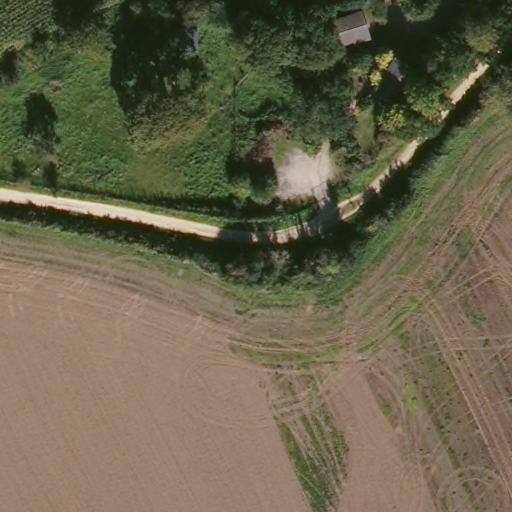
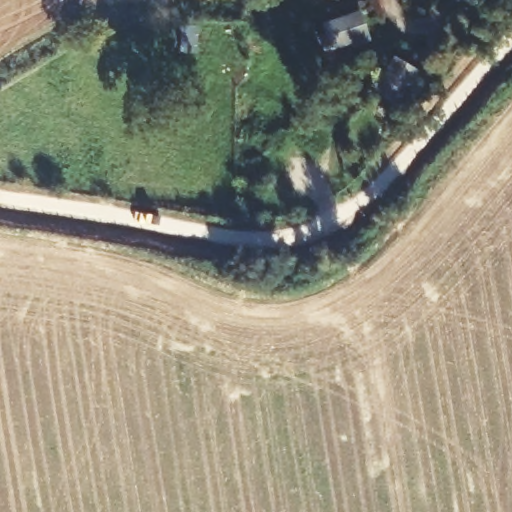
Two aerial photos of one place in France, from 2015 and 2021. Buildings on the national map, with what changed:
unchanged [(369,35),(324,47),(315,16),(360,4),(369,35)]
unchanged [(423,69),(398,107),(368,89),(391,48),(423,69)]

